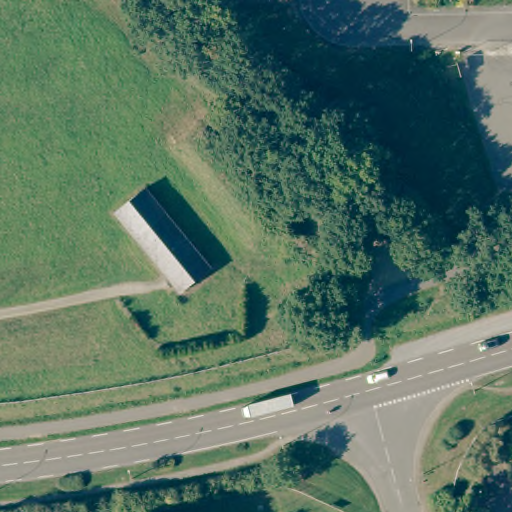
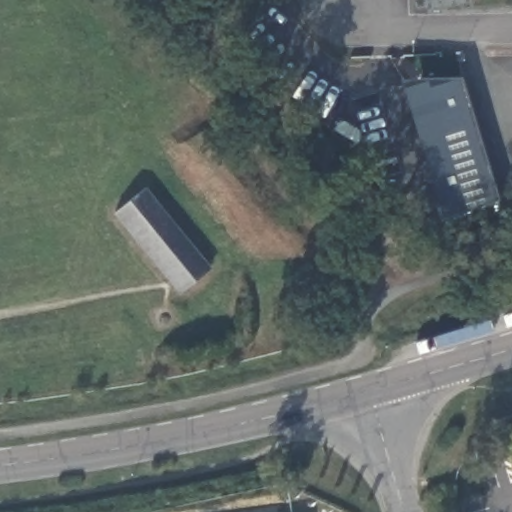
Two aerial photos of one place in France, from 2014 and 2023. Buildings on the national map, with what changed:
new [(458,76),(498,200),(442,222),(398,77),(458,76)]
unchanged [(208,266),(178,291),(113,212),(143,187),(208,266)]

